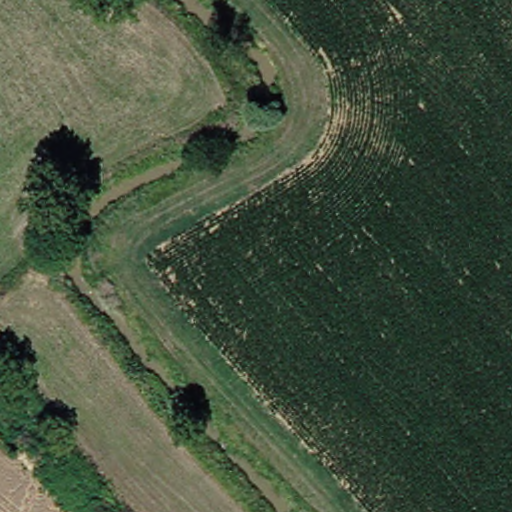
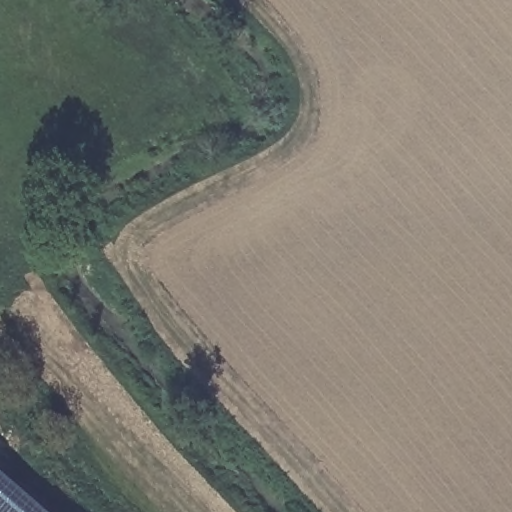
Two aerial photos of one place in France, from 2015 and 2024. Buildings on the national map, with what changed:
new [(47,512),(0,512),(0,471),(47,512)]

